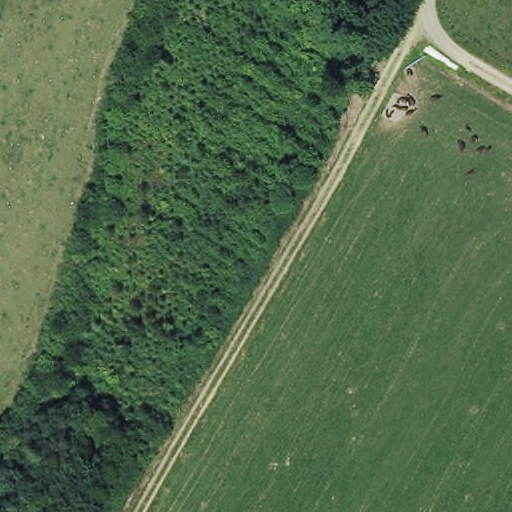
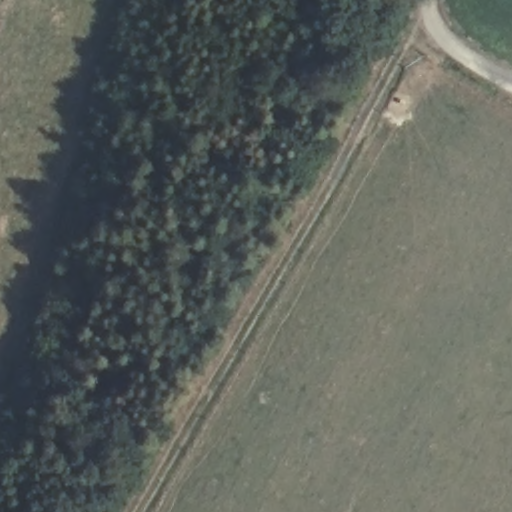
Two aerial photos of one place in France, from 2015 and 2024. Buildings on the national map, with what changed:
[]

